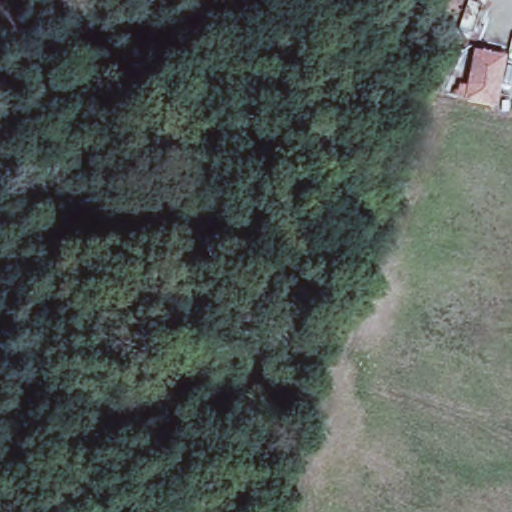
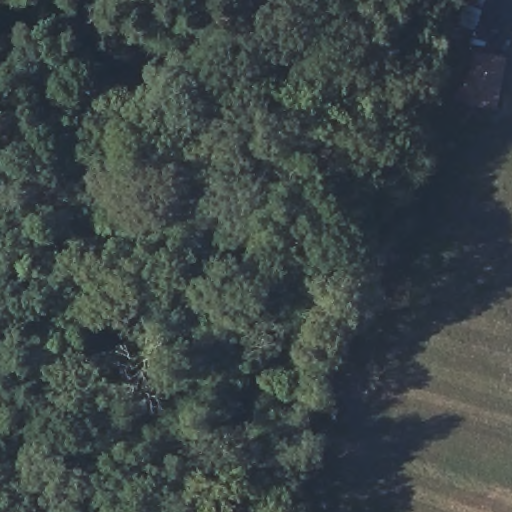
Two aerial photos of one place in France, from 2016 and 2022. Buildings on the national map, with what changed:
unchanged [(510,55),(498,106),(444,95),(451,72),(468,75),(474,49),(510,55)]

